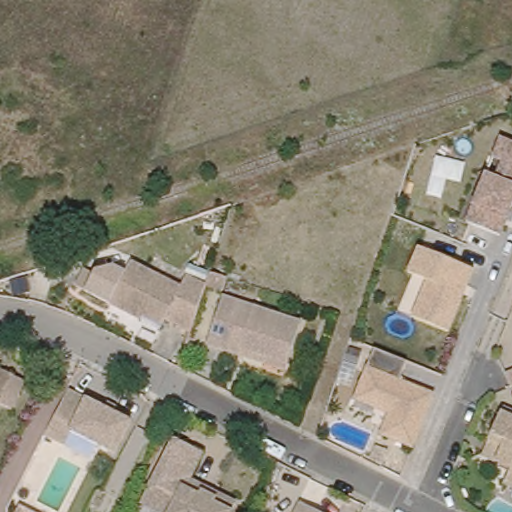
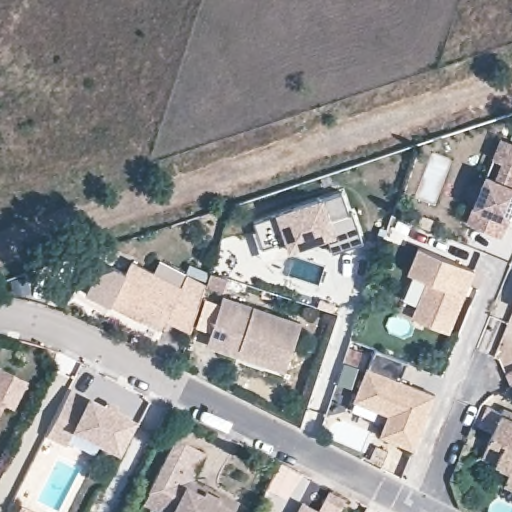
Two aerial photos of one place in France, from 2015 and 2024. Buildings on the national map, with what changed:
unchanged [(504,231),(471,219),(488,172),(504,137),(512,140),(512,209),(504,231)]
new [(330,237),(290,251),(264,261),(253,231),(256,230),(254,221),(276,212),(323,197),(342,192),(349,213),(353,212),(362,242),(333,251),(330,237)]
unchanged [(477,267),(450,329),(415,312),(429,281),(409,272),(422,244),(477,267)]
unchanged [(169,320),(166,326),(146,315),(144,319),(112,303),(132,261),(178,286),(185,272),(207,284),(191,331),(169,320)]
unchanged [(112,303),(73,286),(82,268),(94,273),(114,265),(127,272),(112,303)]
unchanged [(225,290),(207,284),(211,272),(229,278),(225,290)]
unchanged [(238,354),(208,345),(224,296),(302,322),(289,362),(287,370),(238,354)]
unchanged [(409,360),(401,376),(437,392),(415,444),(384,432),(389,408),(357,396),(378,347),(409,360)]
unchanged [(13,403),(1,397),(0,398),(0,363),(27,377),(13,403)]
unchanged [(512,372),(512,386),(511,387),(506,375),(512,372)]
unchanged [(108,407),(116,411),(114,416),(131,425),(116,457),(73,434),(66,448),(46,438),(69,393),(105,412),(108,407)]
unchanged [(501,461),(488,455),(497,435),(509,407),(512,409),(512,466),(501,461)]
unchanged [(229,512),(166,512),(167,510),(143,498),(176,434),(204,450),(196,464),(192,471),(206,479),(238,495),(229,512)]
unchanged [(512,477),(512,482),(510,481),(512,477)]
unchanged [(303,503),(319,512),(298,512),(303,503)]

